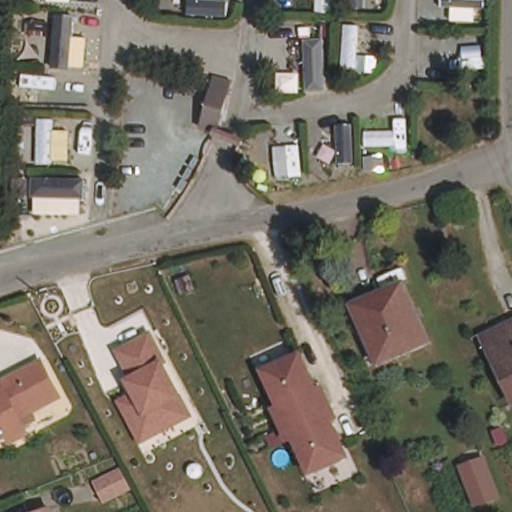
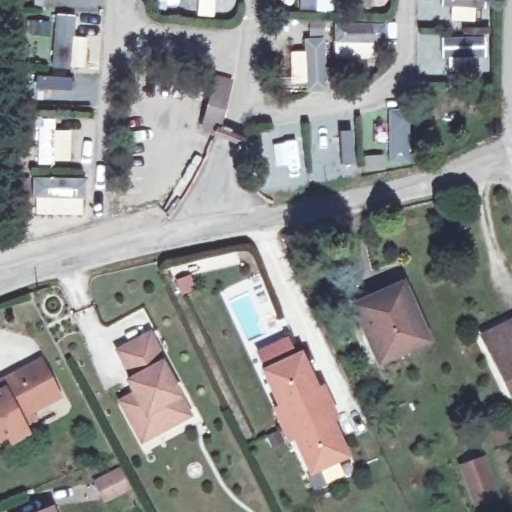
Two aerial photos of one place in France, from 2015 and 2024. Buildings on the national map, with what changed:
unchanged [(192,127),(211,82),(237,85),(228,130),(192,127)]
unchanged [(368,342),(354,311),(400,290),(426,342),(387,361),(378,365),(368,342)]
unchanged [(480,343),(507,329),(511,331),(512,331),(512,405),(510,406),(480,343)]
unchanged [(179,427),(139,443),(126,414),(121,403),(136,397),(131,385),(134,379),(123,352),(154,339),(180,403),(188,423),(179,427)]
unchanged [(30,429),(13,439),(6,430),(0,433),(0,379),(24,365),(42,355),(47,365),(61,391),(44,401),(22,412),(30,429)]
unchanged [(287,443),(273,413),(279,411),(263,375),(299,358),(315,394),(322,391),(336,421),(329,424),(345,460),(308,476),(292,441),(287,443)]
unchanged [(463,467),(483,458),(499,495),(479,503),(463,467)]
unchanged [(136,494),(111,507),(100,482),(124,470),(136,494)]
unchanged [(47,505),(49,512),(30,512),(47,505)]

